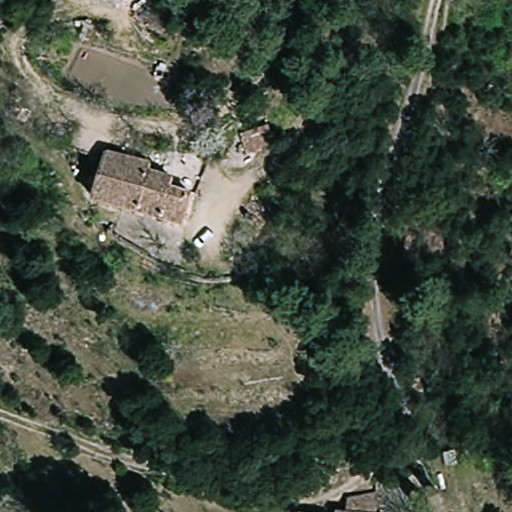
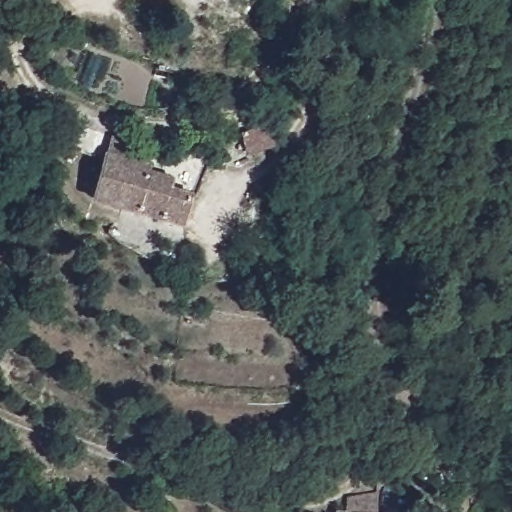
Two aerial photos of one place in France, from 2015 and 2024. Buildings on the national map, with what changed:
unchanged [(108,151),(157,163),(156,171),(178,177),(177,187),(194,190),(189,226),(94,201),(108,151)]
unchanged [(355,497),(362,500),(365,488),(390,495),(384,512),(350,512),(355,497)]
unchanged [(308,505),(309,503),(311,504),(339,512),(306,512),(308,505)]

